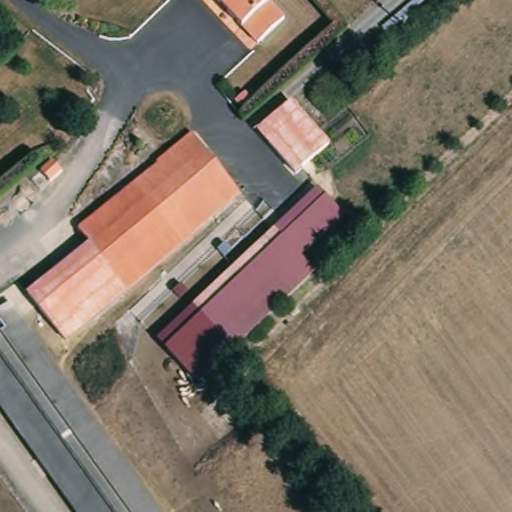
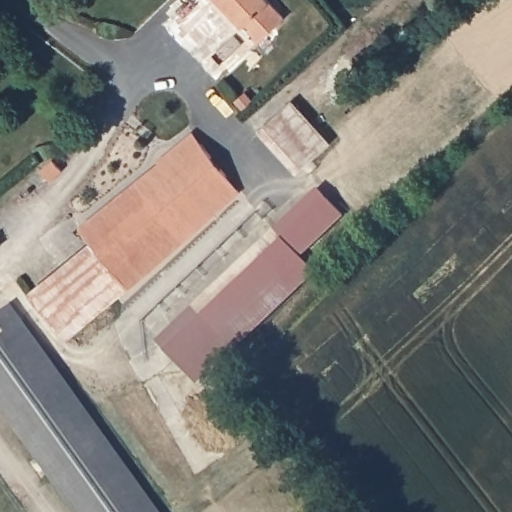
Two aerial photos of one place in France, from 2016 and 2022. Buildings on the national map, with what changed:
unchanged [(300,32),(274,57),(220,0),(270,0),(300,32)]
unchanged [(330,142),(296,171),(289,162),(259,127),(293,99),(304,111),(330,142)]
unchanged [(128,287),(96,249),(83,232),(159,170),(155,166),(191,136),(241,194),(128,287)]
unchanged [(325,192),(339,209),(328,220),(293,248),(305,262),(220,333),(207,317),(192,300),(287,222),(325,192)]
unchanged [(96,249),(128,287),(81,326),(66,337),(34,299),(53,284),(96,249)]
unchanged [(0,336),(3,334),(0,330),(0,311),(8,303),(10,301),(5,293),(18,283),(33,304),(22,313),(26,320),(164,512),(74,512),(0,410),(0,336)]

